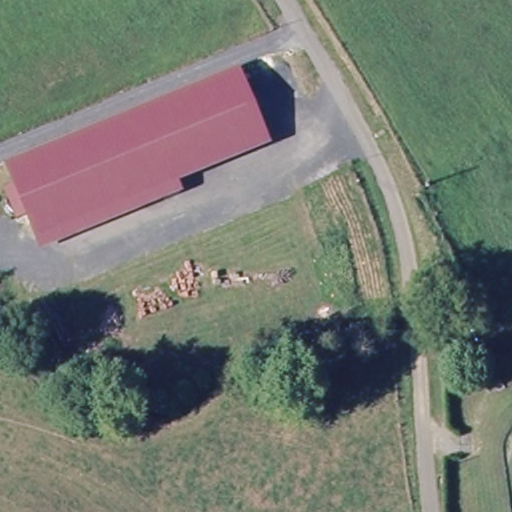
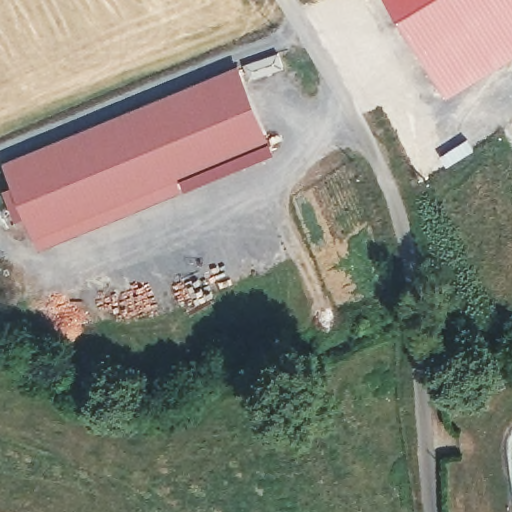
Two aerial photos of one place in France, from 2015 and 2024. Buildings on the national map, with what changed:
new [(447,95),(398,16),(388,0),(512,0),(512,58),(447,95)]
unchanged [(140,112),(234,74),(263,149),(171,186),(140,112)]
unchanged [(0,198),(10,194),(0,169),(140,112),(171,186),(30,244),(21,221),(11,225),(0,198)]

